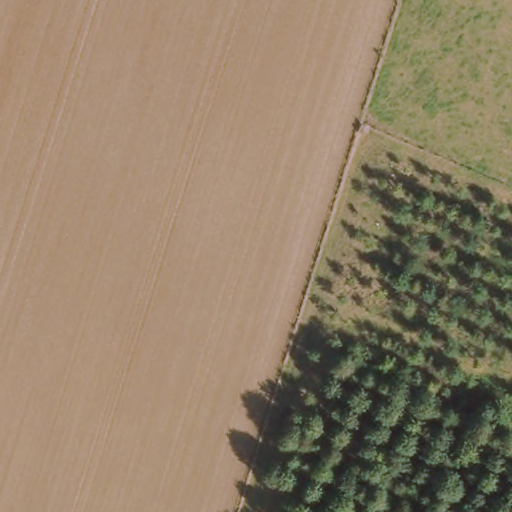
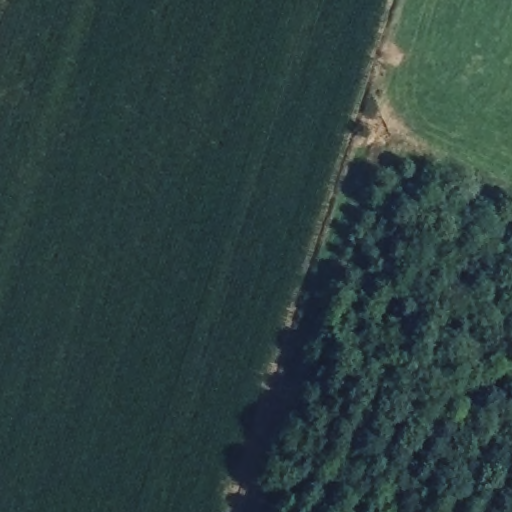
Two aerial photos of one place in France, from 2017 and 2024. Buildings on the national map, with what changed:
[]

